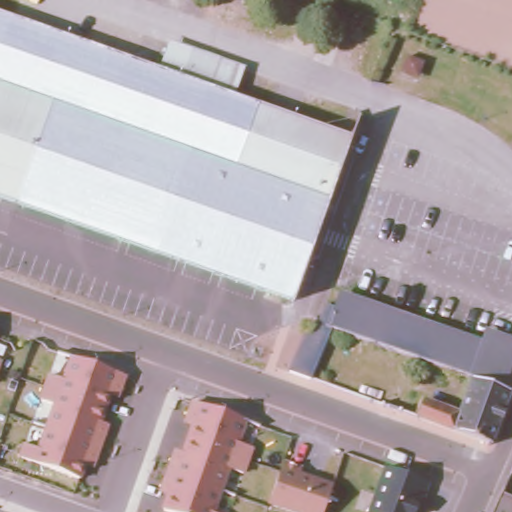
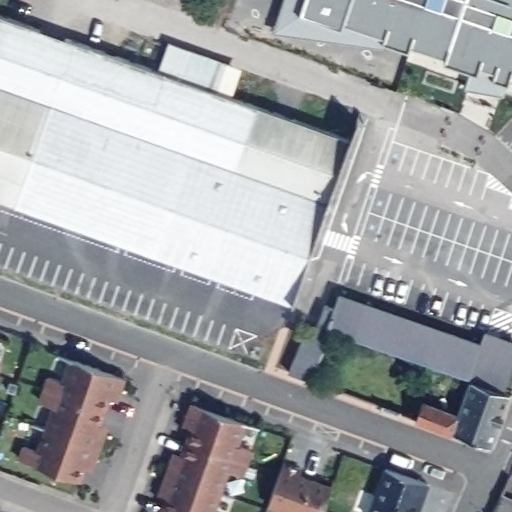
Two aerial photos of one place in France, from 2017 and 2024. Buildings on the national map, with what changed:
new [(512,89),(384,45),(380,51),(272,36),(286,0),(512,0),(512,89)]
unchanged [(181,74),(127,239),(0,194),(0,11),(181,74)]
unchanged [(181,74),(350,133),(292,297),(127,239),(181,74)]
unchanged [(304,329),(312,332),(325,301),(336,305),(340,293),(481,342),(485,331),(512,340),(512,351),(500,385),(470,374),(353,333),(330,324),(318,356),(315,365),(310,376),(288,368),(293,357),(296,348),(304,329)]
unchanged [(125,376),(117,401),(110,399),(103,422),(109,426),(95,470),(87,468),(82,481),(16,463),(22,443),(38,448),(52,408),(37,404),(46,371),(62,377),(68,361),(125,376)]
unchanged [(2,363),(0,370),(0,362),(2,363)]
unchanged [(405,391),(457,411),(470,374),(500,385),(508,388),(490,441),(399,408),(405,391)]
unchanged [(240,444),(254,449),(245,476),(230,472),(217,512),(161,512),(165,499),(156,497),(170,453),(183,457),(191,431),(178,428),(188,404),(247,422),(240,444)]
unchanged [(283,459),(302,467),(301,471),(335,484),(323,512),(290,512),(267,503),(283,459)]
unchanged [(425,480),(415,512),(368,512),(386,464),(425,480)]
unchanged [(512,494),(512,512),(490,512),(500,490),(512,494)]

